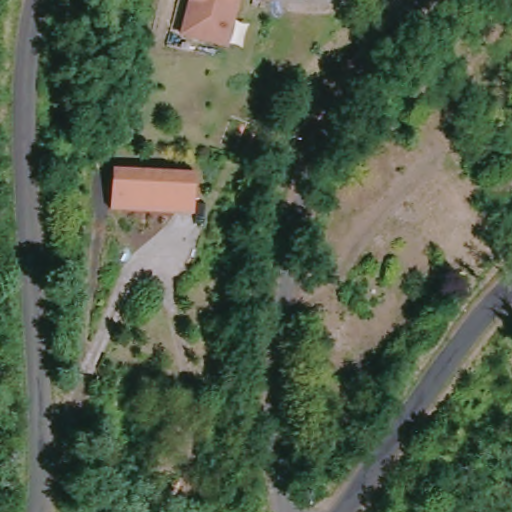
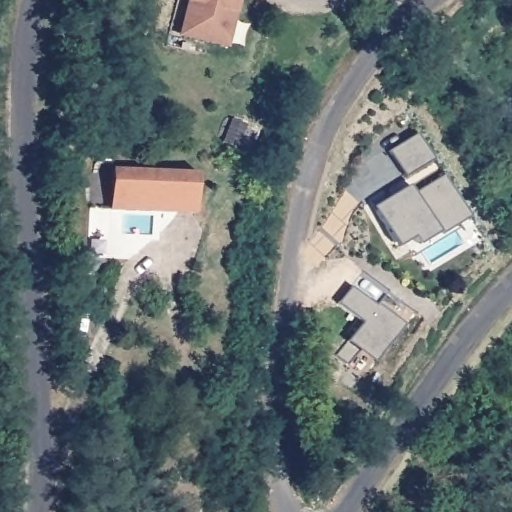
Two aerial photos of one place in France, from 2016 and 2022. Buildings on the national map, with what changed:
unchanged [(191,35),(199,0),(246,0),(243,10),(234,46),(228,45),(191,35)]
unchanged [(200,178),(197,201),(196,216),(113,208),(118,168),(200,178)]
new [(439,232),(438,233),(419,245),(414,237),(399,246),(375,207),(411,187),(414,194),(445,177),(469,217),(441,234),(439,232)]
new [(356,351),(346,364),(336,356),(346,342),(361,322),(338,304),(350,289),(374,308),(376,306),(401,325),(372,362),(356,351)]

